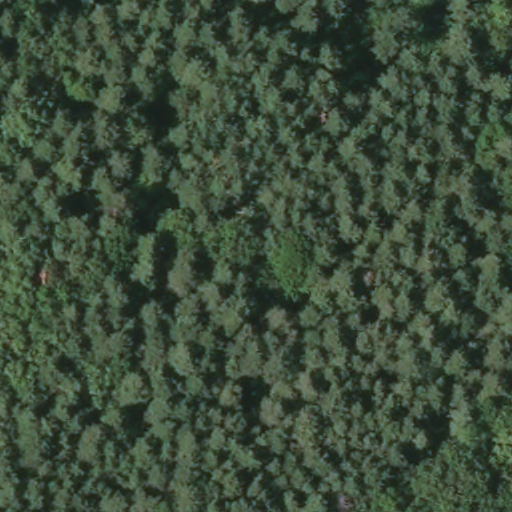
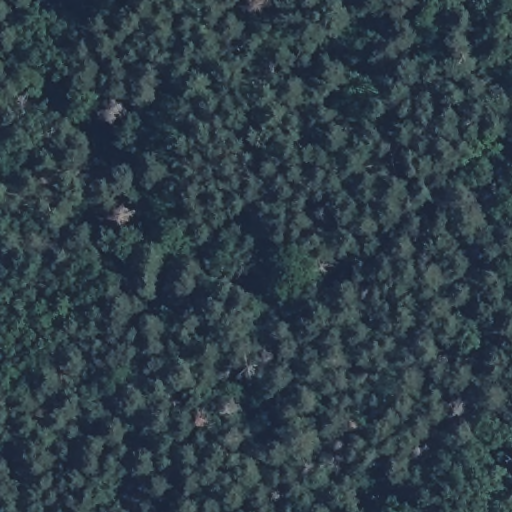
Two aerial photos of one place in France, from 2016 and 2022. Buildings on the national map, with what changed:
[]

